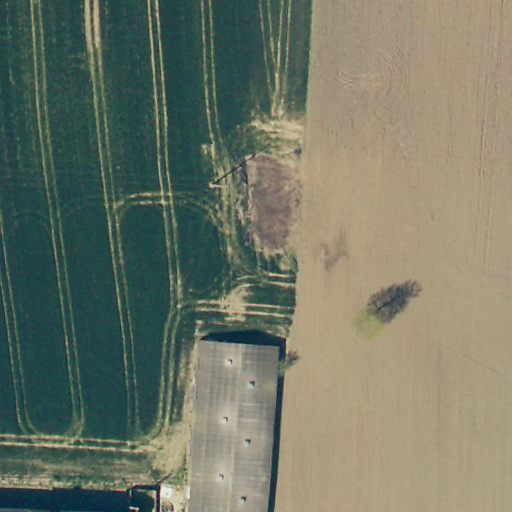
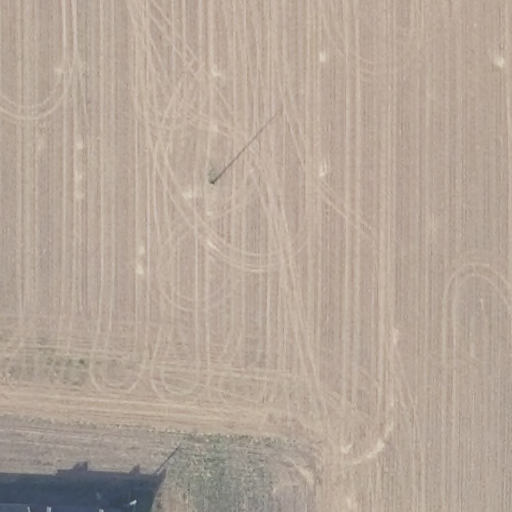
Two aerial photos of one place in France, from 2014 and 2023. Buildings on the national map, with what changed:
demolished [(265,512),(192,512),(206,343),(279,350),(265,512)]
unchanged [(0,507),(16,509),(16,512),(0,512),(0,507)]
unchanged [(16,509),(21,509),(66,512),(16,512),(16,509)]

